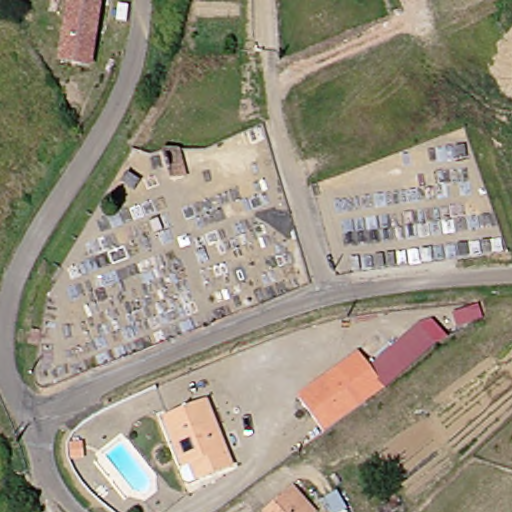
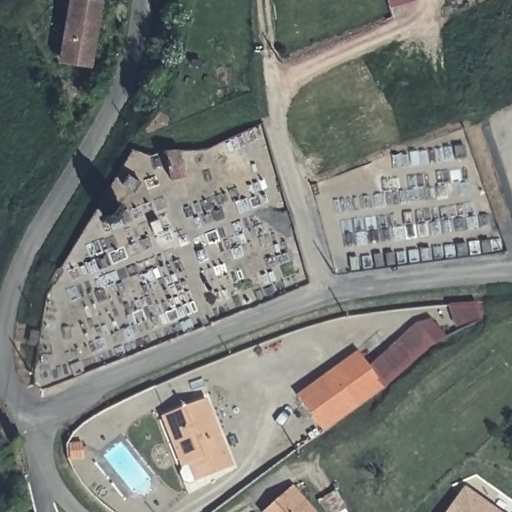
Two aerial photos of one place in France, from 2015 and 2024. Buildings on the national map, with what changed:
new [(390,0),(405,0),(391,4),(390,0)]
unchanged [(56,71),(85,16),(110,30),(80,85),(56,71)]
unchanged [(406,319),(426,342),(376,382),(360,360),(406,319)]
unchanged [(347,351),(373,388),(315,426),(288,391),(347,351)]
unchanged [(185,475),(182,476),(175,476),(169,475),(166,471),(165,467),(165,463),(172,460),(149,412),(190,393),(222,458),(185,475)]
unchanged [(254,507),(284,483),(307,512),(258,512),(254,507)]
new [(466,490),(498,512),(450,512),(466,490)]

